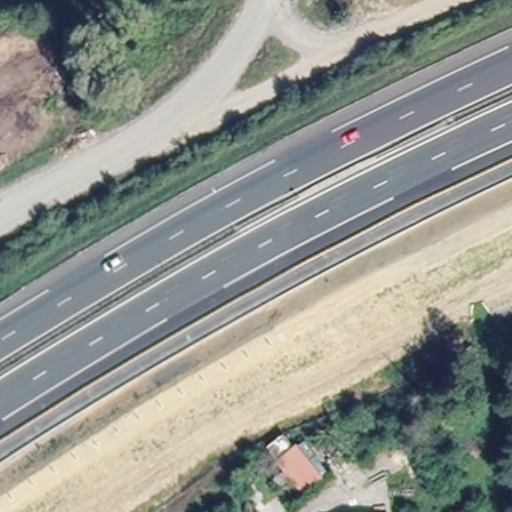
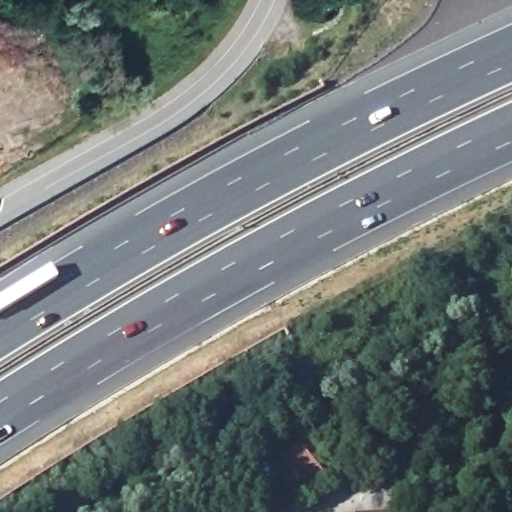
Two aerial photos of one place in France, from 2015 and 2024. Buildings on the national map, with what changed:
unchanged [(319,481),(294,497),(267,466),(293,447),(319,481)]

